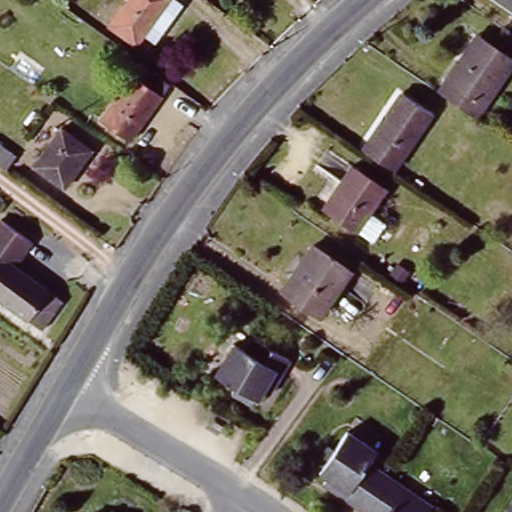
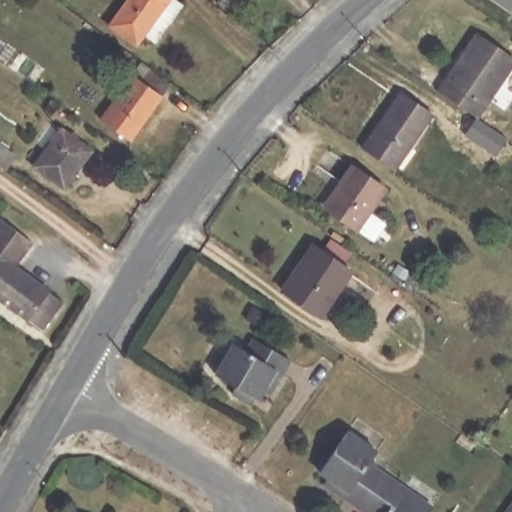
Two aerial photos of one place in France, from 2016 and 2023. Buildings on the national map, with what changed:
unchanged [(146,38),(119,19),(133,0),(173,0),(153,27),(146,38)]
unchanged [(466,98),(447,85),(468,55),(486,29),(489,32),(512,48),(512,72),(485,111),(466,98)]
unchanged [(138,134),(109,113),(141,68),(149,55),(158,62),(178,78),(138,134)]
unchanged [(372,143),(411,86),(441,107),(404,164),(372,143)]
unchanged [(100,144),(73,181),(43,159),(69,122),(100,144)]
unchanged [(24,151),(15,164),(0,153),(0,135),(1,134),(24,151)]
unchanged [(336,202),(353,177),(350,175),(360,160),(393,181),(364,222),(336,202)]
unchanged [(40,235),(23,259),(70,294),(50,322),(0,285),(0,225),(9,212),(40,235)]
unchanged [(360,264),(329,309),(291,282),(299,271),(315,248),(322,238),(360,264)]
unchanged [(239,385),(243,378),(224,367),(242,337),(253,343),(261,331),(297,352),(289,365),(276,386),(270,383),(266,390),(263,389),(259,396),(239,385)]
unchanged [(228,422),(226,427),(212,419),(216,413),(228,422)]
unchanged [(353,489),(331,474),(335,468),(327,463),(329,461),(321,456),(335,437),(341,442),(355,423),(384,444),(376,454),(388,462),(364,497),(353,489)]
unchanged [(428,512),(386,512),(396,498),(387,492),(376,506),(364,497),(388,462),(438,497),(428,512)]
unchanged [(512,505),(512,512),(507,512),(512,505)]
unchanged [(92,511),(94,512),(91,512),(92,511)]

